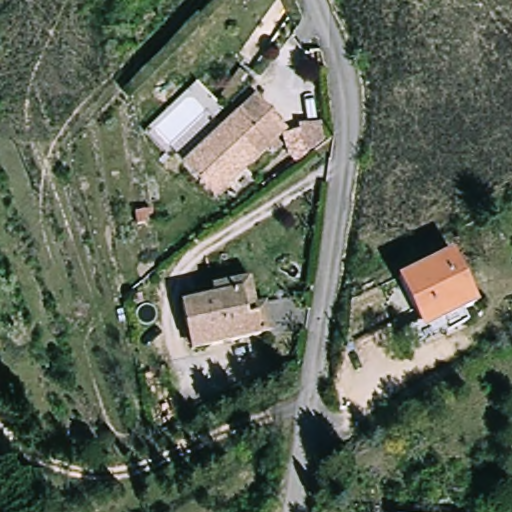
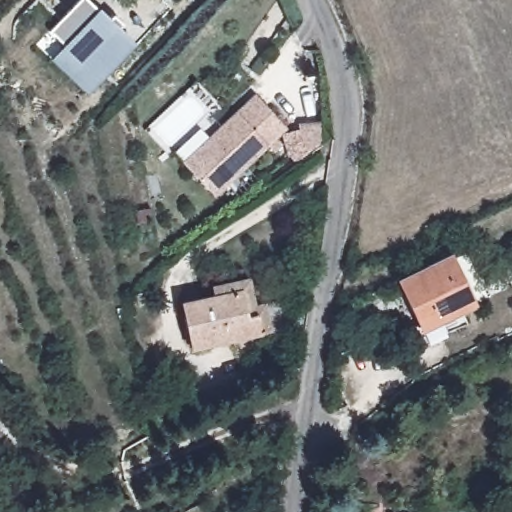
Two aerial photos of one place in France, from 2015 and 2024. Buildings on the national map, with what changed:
new [(47,29),(75,0),(88,0),(107,18),(111,13),(121,23),(117,27),(132,43),(86,92),(69,76),(51,58),(63,44),(47,29)]
unchanged [(209,140),(254,96),(286,127),(274,138),(281,145),(273,152),(266,146),(214,197),(189,171),(183,165),(209,140)]
unchanged [(321,108),(326,141),(314,150),(299,130),(296,112),(321,108)]
unchanged [(422,346),(417,336),(423,334),(395,280),(449,255),(475,307),(460,315),(465,325),(422,346)]
unchanged [(211,286),(249,278),(255,306),(264,304),(271,332),(261,335),(257,317),(248,319),(241,290),(214,296),(211,286)]
unchanged [(241,290),(248,319),(257,317),(261,335),(192,350),(181,304),(214,296),(241,290)]

